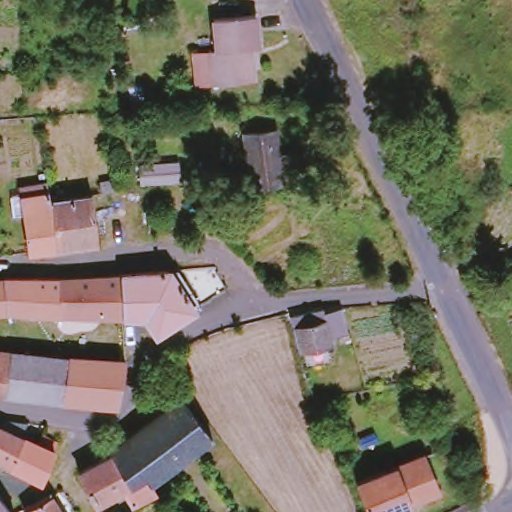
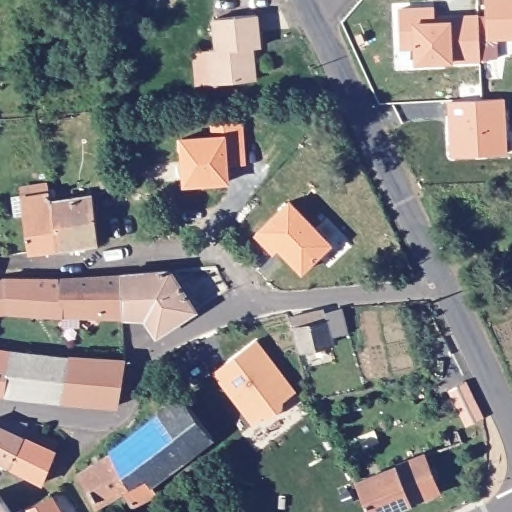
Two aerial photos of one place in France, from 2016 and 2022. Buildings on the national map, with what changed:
new [(485,0),(512,0),(512,37),(487,39),(485,0)]
new [(434,8),(435,22),(449,21),(449,17),(479,16),(480,59),(416,61),(415,40),(400,40),(399,9),(434,8)]
unchanged [(207,55),(222,53),(230,51),(227,21),(270,18),(272,49),(265,50),(268,81),(225,87),(210,89),(207,55)]
new [(504,98),(506,154),(456,156),(455,135),(451,135),(449,100),(504,98)]
new [(218,127),(245,125),(248,166),(230,166),(230,184),(187,186),(185,140),(218,139),(218,127)]
unchanged [(253,192),(248,138),(281,135),(287,189),(253,192)]
unchanged [(149,168),(182,165),(184,184),(149,186),(149,168)]
unchanged [(16,204),(13,188),(42,183),(45,197),(91,193),(92,204),(94,242),(54,248),(24,254),(16,204)]
new [(289,204),(331,244),(304,273),(281,251),(276,256),(256,238),(289,204)]
unchanged [(114,277),(150,274),(159,274),(190,313),(152,337),(141,319),(119,319),(114,277)]
unchanged [(58,279),(114,277),(119,319),(61,317),(2,314),(0,314),(0,280),(58,279)]
new [(348,333),(332,338),(335,345),(300,353),(292,316),(324,309),(325,312),(343,308),(348,333)]
demolished [(290,318),(304,314),(306,323),(327,316),(334,339),(299,349),(290,318)]
new [(297,391),(284,403),(283,409),(270,419),(264,417),(252,427),(213,374),(257,338),(297,391)]
unchanged [(6,351),(0,375),(0,350),(6,351)]
unchanged [(27,401),(0,396),(0,375),(6,351),(34,354),(27,401)]
unchanged [(45,355),(64,357),(57,403),(35,402),(27,401),(34,354),(45,355)]
unchanged [(112,408),(58,403),(57,403),(64,357),(118,361),(112,408)]
new [(465,380),(476,401),(481,416),(464,423),(448,386),(465,380)]
unchanged [(76,471),(108,451),(107,448),(108,447),(178,394),(211,432),(145,477),(152,487),(128,502),(119,488),(96,502),(76,471)]
unchanged [(0,466),(0,415),(25,420),(19,433),(21,434),(9,463),(0,466)]
unchanged [(48,436),(63,444),(59,454),(42,446),(48,436)]
unchanged [(357,475),(418,450),(432,488),(373,512),(366,512),(351,478),(357,475)]
unchanged [(46,492),(58,512),(26,512),(23,505),(46,492)]
unchanged [(9,512),(0,512),(0,498),(9,512)]
unchanged [(20,507),(23,512),(12,512),(20,507)]

